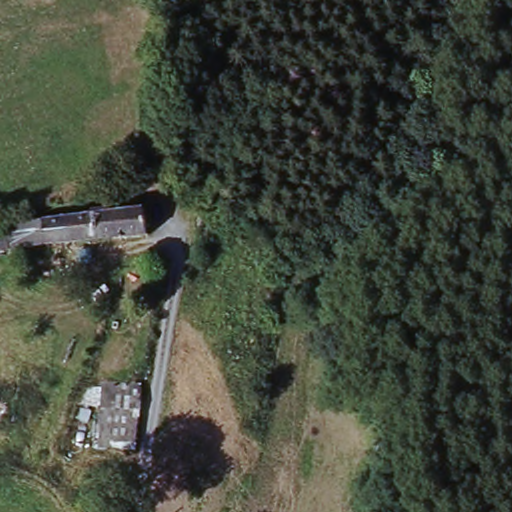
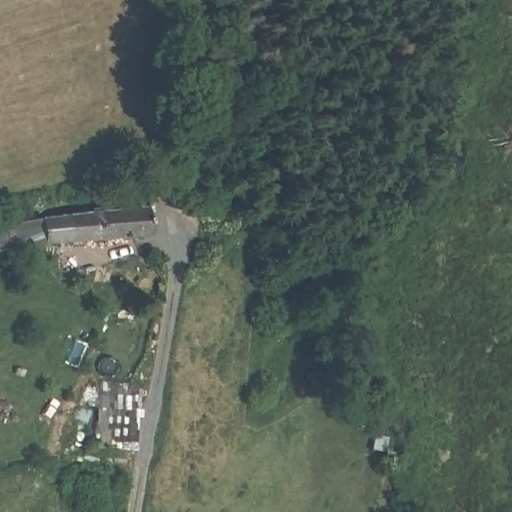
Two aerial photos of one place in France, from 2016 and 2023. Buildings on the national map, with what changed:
unchanged [(151,234),(44,254),(37,225),(145,209),(151,234)]
unchanged [(69,269),(95,265),(96,269),(95,278),(71,280),(69,269)]

